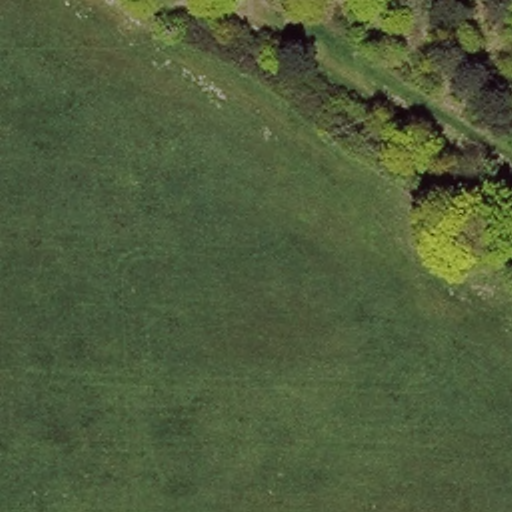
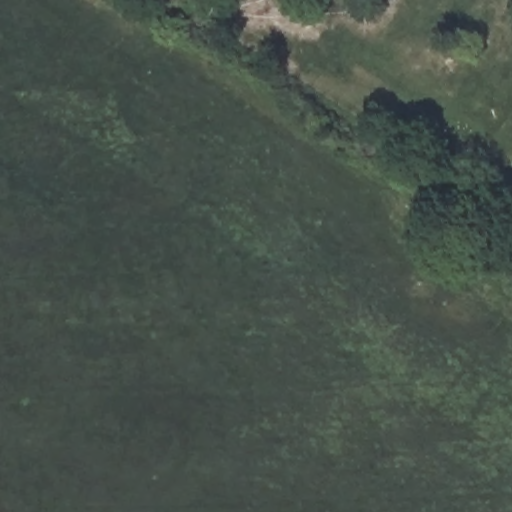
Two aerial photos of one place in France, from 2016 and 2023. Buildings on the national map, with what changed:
[]

